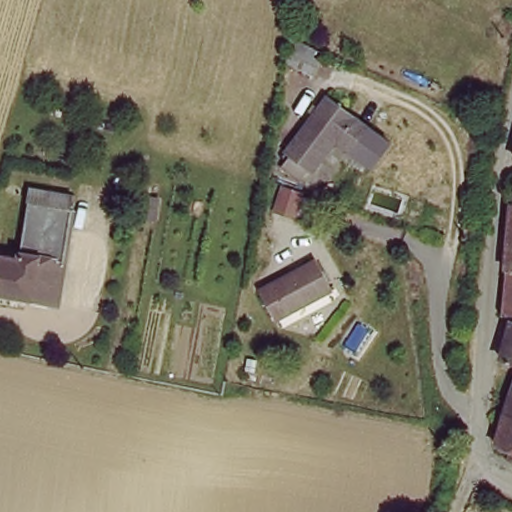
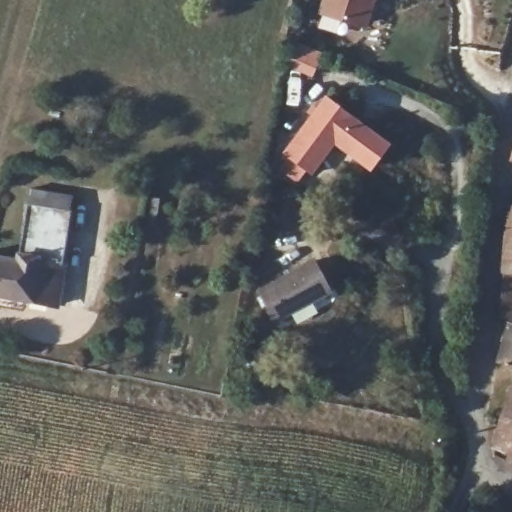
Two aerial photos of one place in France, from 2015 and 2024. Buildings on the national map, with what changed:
new [(377,0),(368,29),(318,14),(322,0),(377,0)]
unchanged [(315,70),(310,85),(283,74),(288,59),(315,70)]
unchanged [(375,133),(355,157),(340,145),(315,176),(289,155),(332,100),(375,133)]
unchanged [(20,249),(24,206),(69,211),(64,254),(20,249)]
unchanged [(0,301),(0,264),(18,266),(20,249),(64,254),(58,307),(0,301)]
unchanged [(321,263),(338,293),(283,325),(266,295),(321,263)]
unchanged [(493,352),(505,316),(512,318),(512,359),(493,352)]
unchanged [(4,343),(7,330),(49,340),(47,351),(4,343)]
unchanged [(509,373),(512,364),(512,375),(509,373)]
unchanged [(486,440),(486,432),(509,373),(512,375),(512,450),(486,440)]

